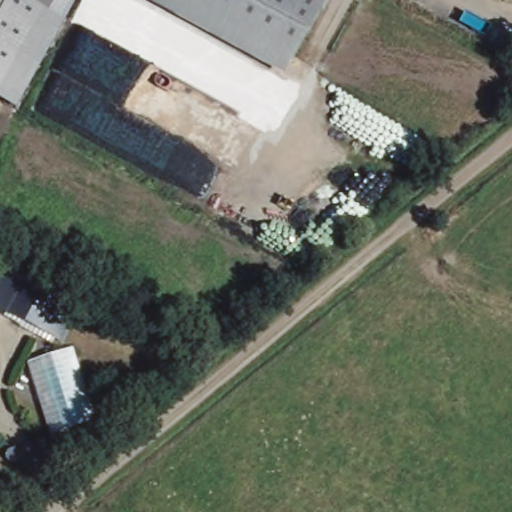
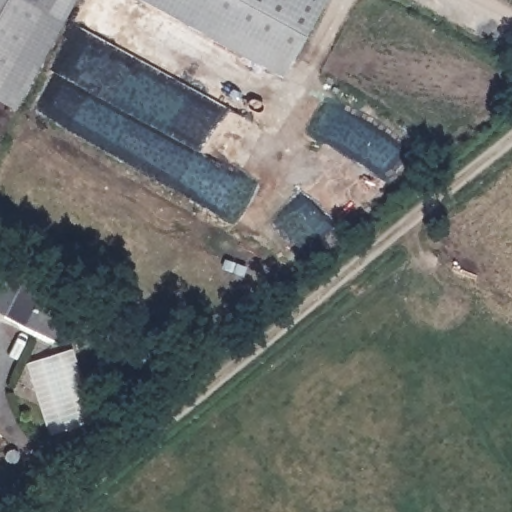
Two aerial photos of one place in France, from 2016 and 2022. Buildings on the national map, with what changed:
unchanged [(0,101),(0,0),(18,0),(50,16),(59,0),(74,0),(17,111),(0,101)]
unchanged [(18,0),(59,0),(50,16),(18,0)]
unchanged [(136,0),(324,0),(286,76),(136,0)]
unchanged [(60,342),(40,332),(0,312),(0,269),(57,299),(77,309),(60,342)]
unchanged [(69,349),(92,421),(48,435),(25,363),(69,349)]

